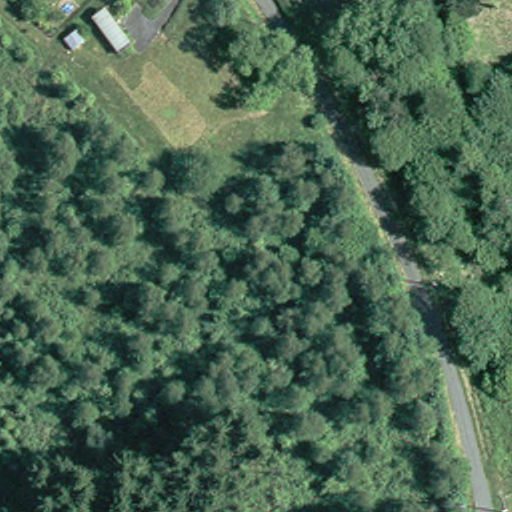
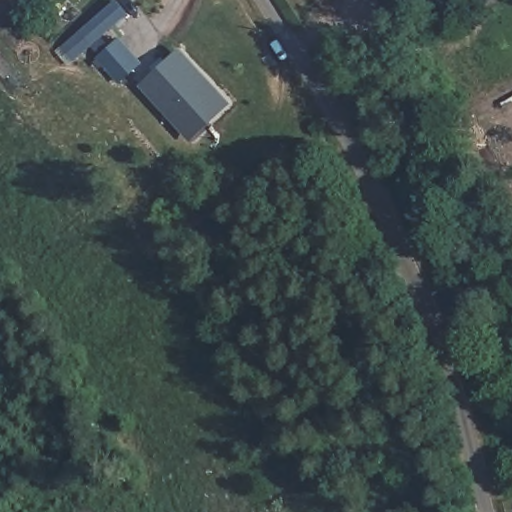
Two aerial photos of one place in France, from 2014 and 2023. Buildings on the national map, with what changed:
unchanged [(119,0),(129,12),(92,45),(81,30),(116,0),(119,0)]
new [(120,39),(142,64),(120,83),(97,58),(120,39)]
new [(230,104),(188,140),(139,86),(180,50),(230,104)]

